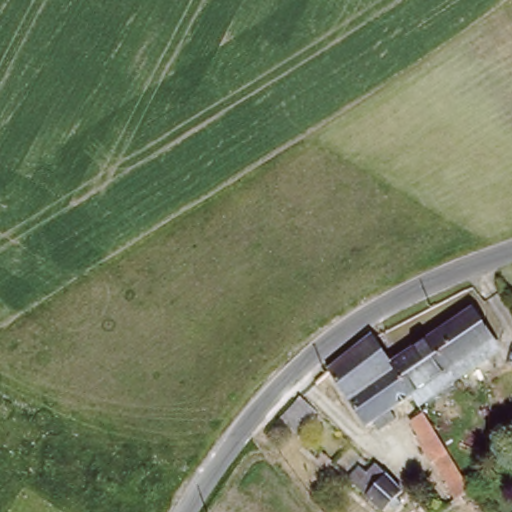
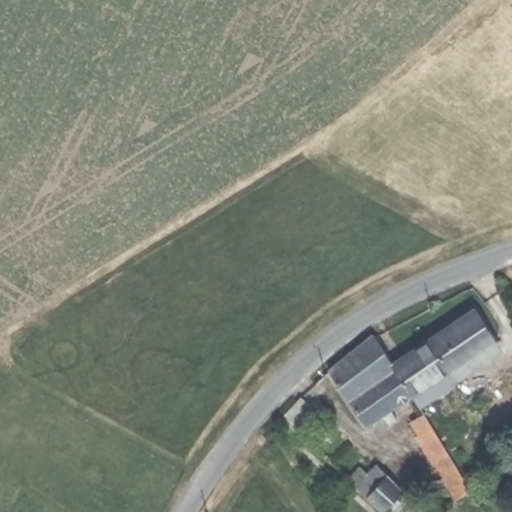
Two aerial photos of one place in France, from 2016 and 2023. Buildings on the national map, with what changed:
unchanged [(415,395),(412,396),(393,410),(395,420),(383,429),(377,422),(370,427),(335,372),(352,357),(380,337),(381,339),(395,362),(397,362),(473,309),(493,338),(502,352),(455,386),(422,407),(415,395)]
unchanged [(315,413),(296,432),(281,419),(301,398),(315,413)]
unchanged [(463,478),(456,483),(441,460),(435,460),(420,435),(424,432),(417,421),(425,416),(463,478)]
unchanged [(361,467),(370,472),(373,468),(400,491),(383,509),(350,480),(361,467)]

